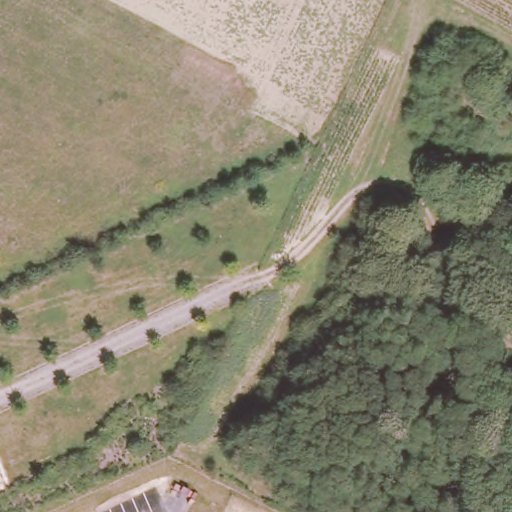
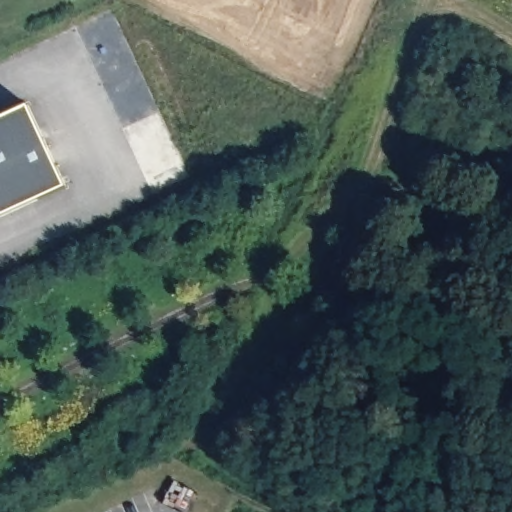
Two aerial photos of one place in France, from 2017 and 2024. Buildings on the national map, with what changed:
new [(65,186),(0,217),(0,117),(27,104),(65,186)]
unchanged [(497,202),(492,173),(512,171),(512,200),(497,202)]
unchanged [(481,390),(445,393),(445,358),(480,356),(481,390)]

